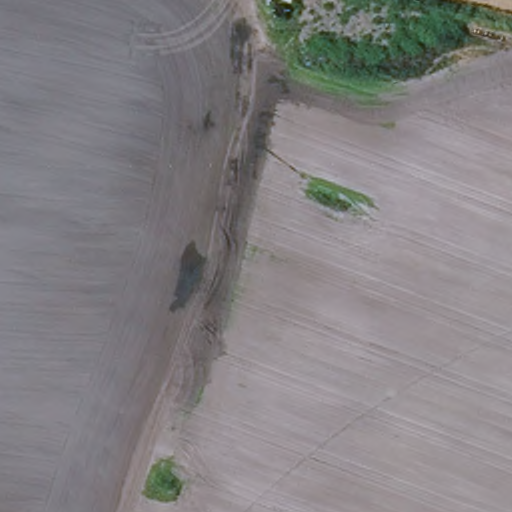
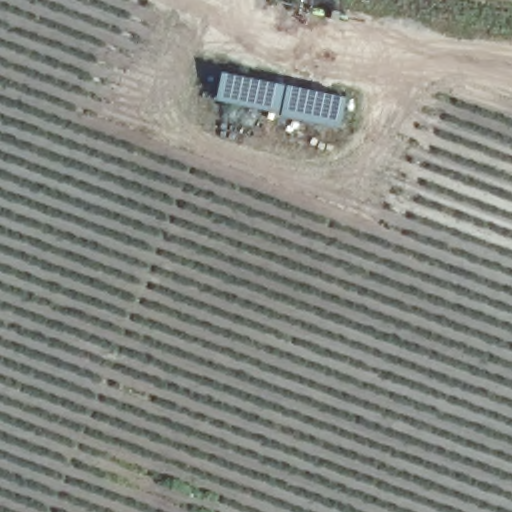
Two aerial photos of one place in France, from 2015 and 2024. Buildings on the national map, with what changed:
new [(339,121),(219,97),(224,73),(344,97),(339,121)]

